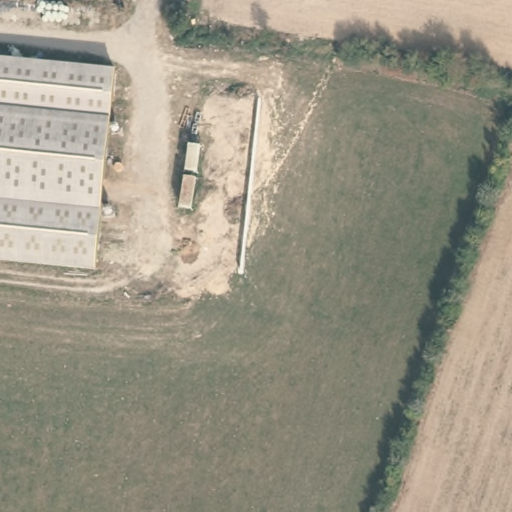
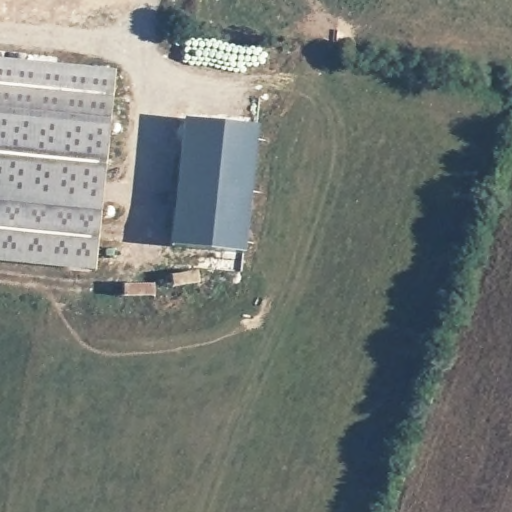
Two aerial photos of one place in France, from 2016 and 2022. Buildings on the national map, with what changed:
unchanged [(95,269),(0,260),(0,61),(115,72),(95,269)]
new [(246,254),(171,246),(184,118),(258,126),(246,254)]

